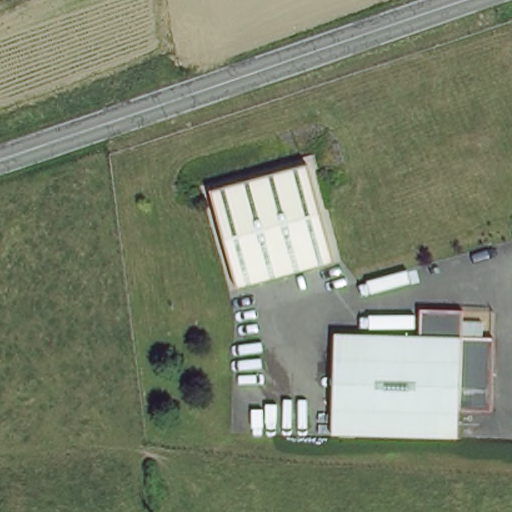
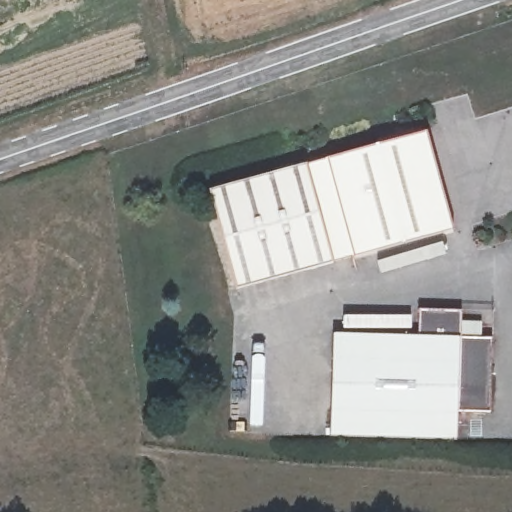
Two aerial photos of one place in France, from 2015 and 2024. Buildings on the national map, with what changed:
new [(332,262),(305,167),(425,133),(452,229),(332,262)]
unchanged [(305,167),(332,262),(238,290),(211,194),(305,167)]
unchanged [(334,442),(337,341),(420,341),(422,313),(462,314),(463,324),(482,326),(482,341),(492,342),(492,415),(462,416),(462,442),(334,442)]

